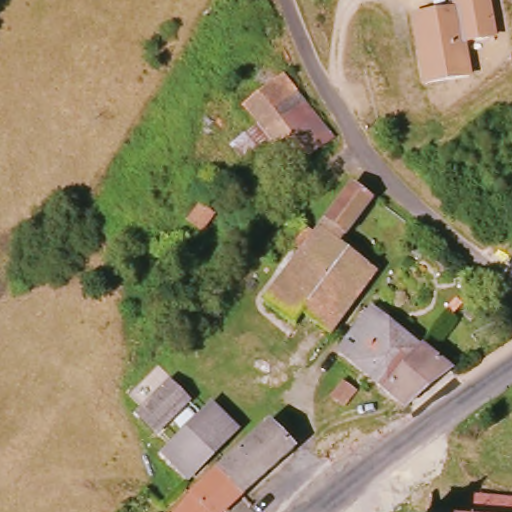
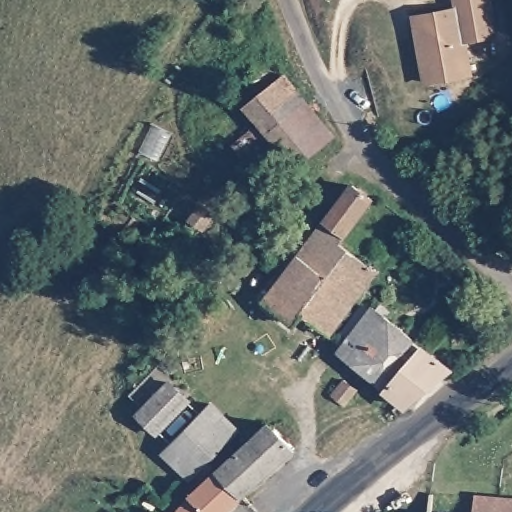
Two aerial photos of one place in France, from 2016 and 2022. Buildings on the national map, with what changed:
unchanged [(451,15),(448,0),(481,0),(488,41),(457,47),(463,80),(420,87),(408,22),(451,15)]
unchanged [(267,59),(280,75),(242,107),(229,91),(267,59)]
unchanged [(242,107),(280,75),(332,139),(292,171),(242,107)]
unchanged [(352,185),(375,202),(348,234),(341,242),(320,226),(352,185)]
unchanged [(320,226),(341,242),(330,257),(337,265),(303,307),(295,318),(265,294),(320,226)]
unchanged [(337,265),(330,257),(341,242),(376,270),(327,327),(303,307),(337,265)]
unchanged [(372,307),(399,331),(362,376),(335,351),(372,307)]
unchanged [(399,331),(419,347),(407,363),(400,360),(376,388),(362,376),(399,331)]
unchanged [(400,360),(407,363),(419,347),(444,368),(404,412),(376,388),(400,360)]
unchanged [(322,390),(337,376),(352,389),(339,406),(322,390)]
unchanged [(163,386),(181,402),(152,435),(135,418),(163,386)]
unchanged [(207,405),(234,432),(235,432),(185,480),(160,453),(207,405)]
unchanged [(266,425),(290,448),(242,497),(217,472),(266,425)]
unchanged [(217,472),(242,497),(227,512),(198,512),(187,502),(217,472)]
unchanged [(427,494),(512,501),(512,512),(427,512),(427,494)]

